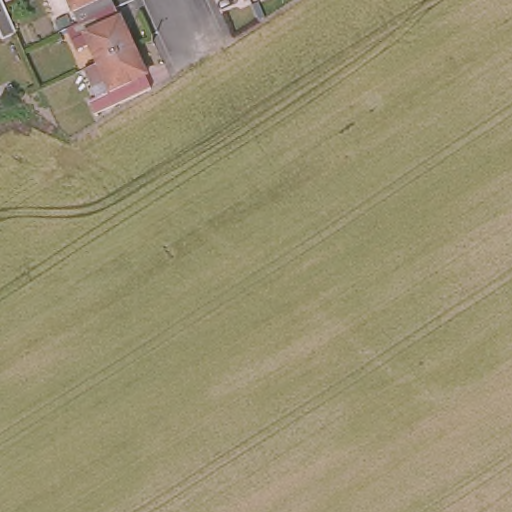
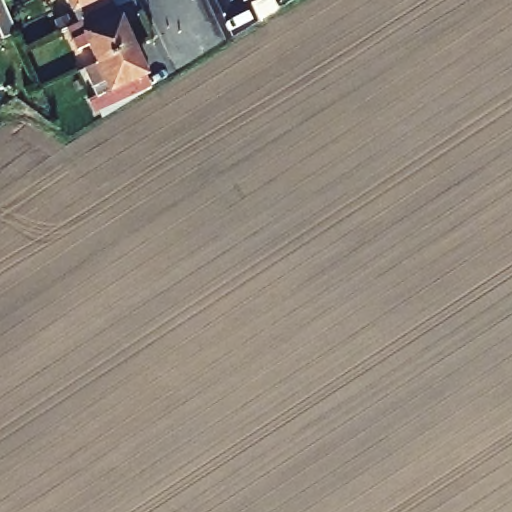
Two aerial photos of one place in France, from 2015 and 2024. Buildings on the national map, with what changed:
unchanged [(45,0),(53,0),(46,3),(45,0)]
unchanged [(83,33),(69,0),(110,0),(117,17),(83,33)]
unchanged [(4,14),(0,15),(0,4),(3,11),(4,14)]
unchanged [(117,17),(137,59),(101,74),(83,33),(117,17)]
unchanged [(155,95),(118,113),(101,74),(137,59),(155,95)]

